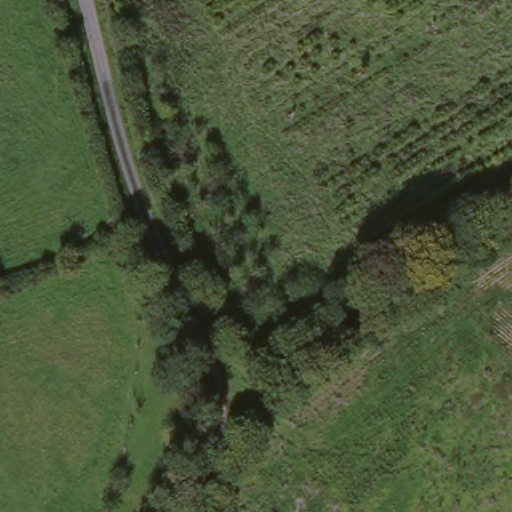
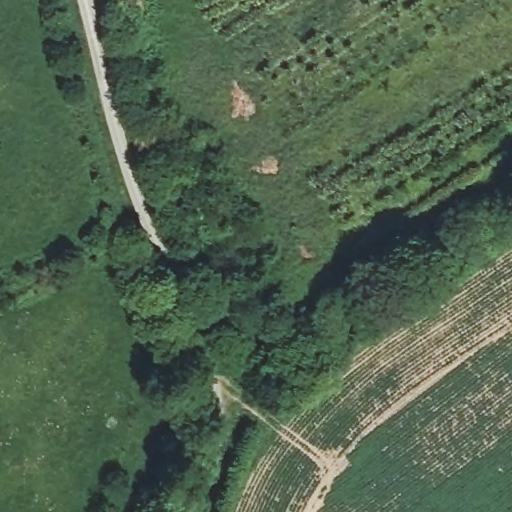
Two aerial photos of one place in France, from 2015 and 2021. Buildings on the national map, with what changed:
[]

